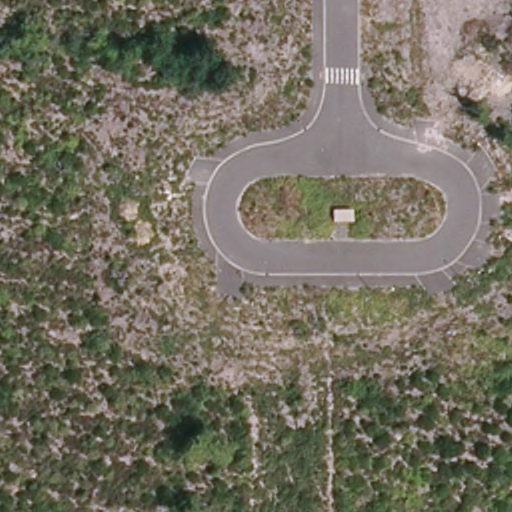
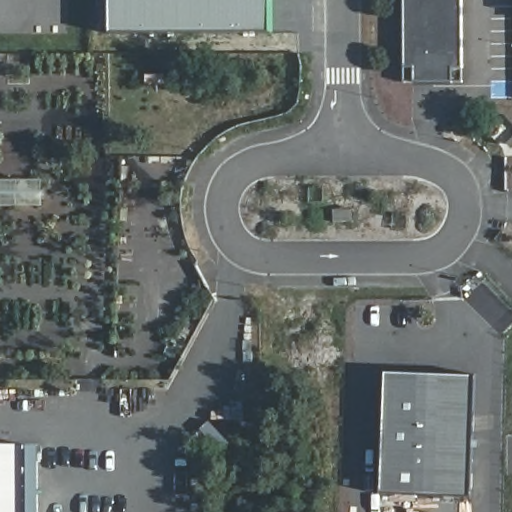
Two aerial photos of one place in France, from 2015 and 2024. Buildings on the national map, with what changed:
new [(273,33),(110,33),(110,0),(273,0),(273,33)]
new [(404,0),(463,0),(463,67),(451,67),(451,82),(415,83),(415,67),(404,67),(404,0)]
new [(386,373),(478,377),(473,499),(382,496),(386,373)]
new [(30,446),(30,512),(0,512),(0,447),(30,446)]

